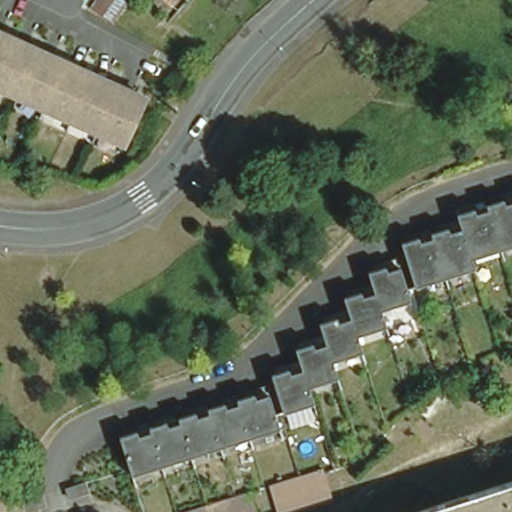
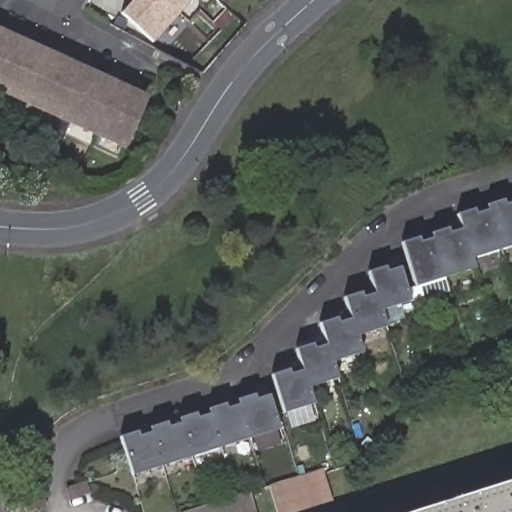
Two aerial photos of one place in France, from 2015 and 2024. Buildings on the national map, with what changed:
new [(168,0),(172,5),(176,0),(191,0),(153,42),(120,13),(132,0),(168,0)]
unchanged [(168,0),(176,0),(172,5),(168,0)]
unchanged [(121,146),(0,91),(0,34),(142,98),(121,146)]
unchanged [(510,209),(512,208),(512,213),(510,209)]
unchanged [(512,213),(512,245),(492,252),(481,218),(510,209),(512,213)]
unchanged [(492,252),(463,261),(455,237),(452,228),(481,218),(492,252)]
unchanged [(463,261),(466,271),(437,280),(426,247),(455,237),(463,261)]
unchanged [(437,280),(408,290),(397,256),(426,247),(437,280)]
unchanged [(360,278),(388,269),(399,303),(371,312),(365,295),(360,278)]
unchanged [(371,312),(376,329),(348,338),(342,321),(337,304),(365,295),(371,312)]
unchanged [(348,338),(353,355),(325,364),(319,347),(314,330),(342,321),(348,338)]
unchanged [(325,364),(330,381),(301,390),(296,373),(290,356),(319,347),(325,364)]
unchanged [(296,373),(301,390),(307,407),(278,416),(267,382),(296,373)]
unchanged [(254,393),(265,426),(237,436),(226,402),(254,393)]
unchanged [(226,402),(237,436),(208,445),(197,411),(226,402)]
unchanged [(197,411),(208,445),(180,454),(169,420),(197,411)]
unchanged [(169,420),(180,454),(151,464),(140,430),(169,420)]
unchanged [(111,439),(140,430),(151,464),(122,473),(111,439)]
unchanged [(277,482),(306,472),(318,468),(320,472),(329,502),(298,512),(275,512),(266,486),(277,482)]
unchanged [(512,479),(512,512),(408,512),(512,479)]
unchanged [(84,481),(88,495),(68,500),(65,485),(84,481)]
unchanged [(205,506),(214,503),(216,502),(225,499),(227,499),(236,496),(238,495),(246,492),(249,492),(256,512),(184,512),(205,506)]
unchanged [(42,493),(45,508),(26,512),(24,512),(20,498),(42,493)]

